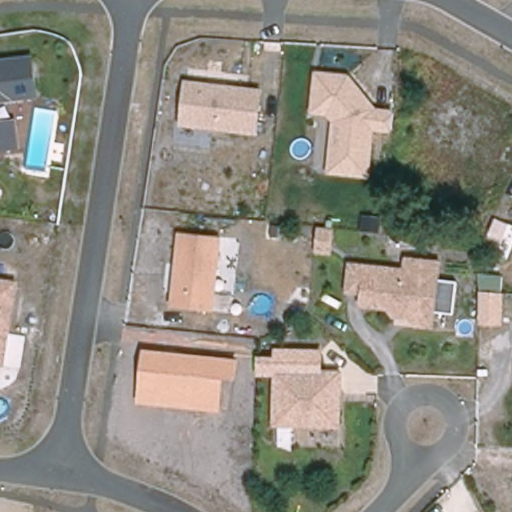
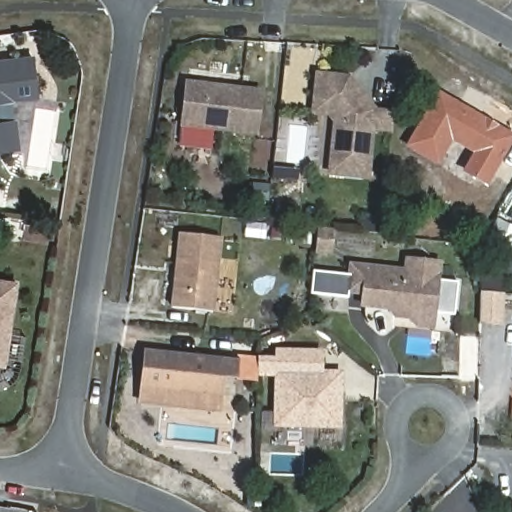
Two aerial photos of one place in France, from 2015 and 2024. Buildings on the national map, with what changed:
unchanged [(33,55),(37,97),(0,102),(0,59),(33,55)]
unchanged [(375,109),(395,112),(393,128),(372,126),(367,175),(332,171),(336,120),(328,112),(313,110),(317,73),(347,76),(375,109)]
unchanged [(260,133),(180,125),(186,78),(265,87),(260,133)]
new [(437,89),(512,134),(512,143),(487,187),(462,172),(471,152),(452,142),(440,165),(405,146),(437,89)]
unchanged [(19,147),(0,150),(0,121),(16,119),(19,147)]
unchanged [(335,255),(315,253),(318,224),(338,227),(335,255)]
unchanged [(219,311),(172,306),(180,231),(225,236),(219,311)]
unchanged [(436,330),(414,329),(413,320),(400,318),(390,309),(361,307),(362,294),(345,292),(348,261),(405,266),(406,256),(443,259),(436,330)]
unchanged [(0,366),(0,278),(20,281),(5,367),(0,366)]
new [(477,278),(499,278),(498,294),(498,323),(478,322),(479,292),(477,278)]
unchanged [(276,367),(275,375),(257,375),(256,355),(273,357),(273,347),(322,348),(322,368),(276,367)]
unchanged [(142,349),(237,359),(236,380),(223,379),(221,412),(137,403),(142,349)]
unchanged [(343,428),(272,427),(276,367),(344,369),(343,428)]

